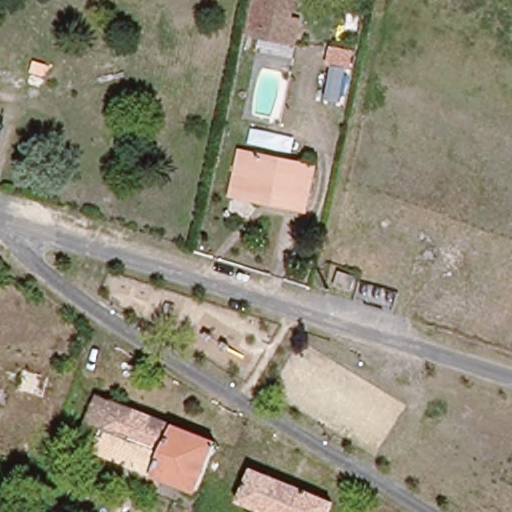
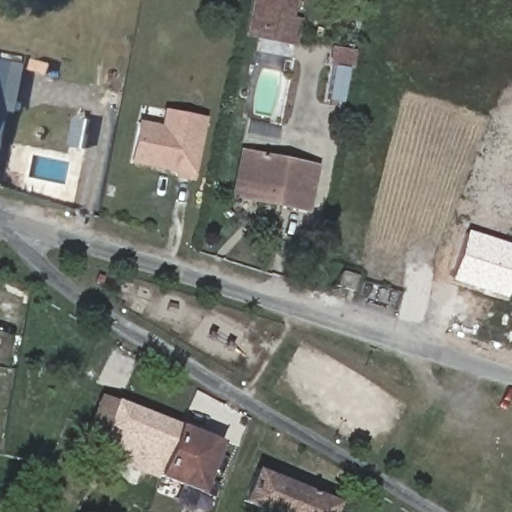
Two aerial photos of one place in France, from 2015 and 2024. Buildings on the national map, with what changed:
unchanged [(269,0),(297,0),(289,36),(262,31),(269,0)]
new [(142,122),(164,126),(168,110),(207,118),(195,179),(178,175),(179,170),(134,161),(142,122)]
unchanged [(304,210),(268,203),(231,195),(240,152),(248,155),(313,167),(304,210)]
new [(452,280),(468,230),(512,245),(512,283),(507,297),(452,280)]
unchanged [(337,273),(353,278),(349,292),(333,287),(337,273)]
unchanged [(22,371),(46,377),(43,393),(19,388),(22,371)]
unchanged [(106,396),(127,405),(221,443),(201,493),(85,447),(106,396)]
unchanged [(255,471),(334,505),(331,512),(265,512),(242,502),(255,471)]

